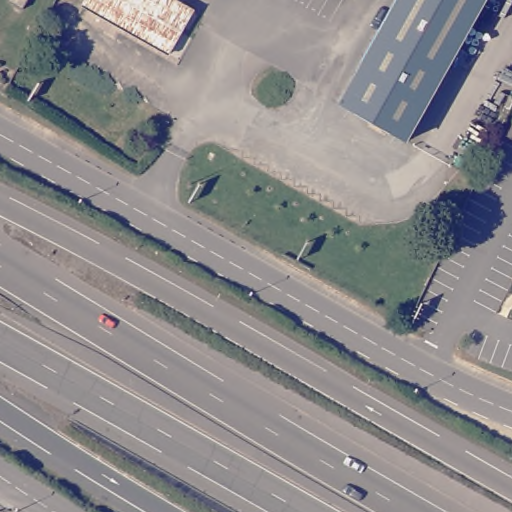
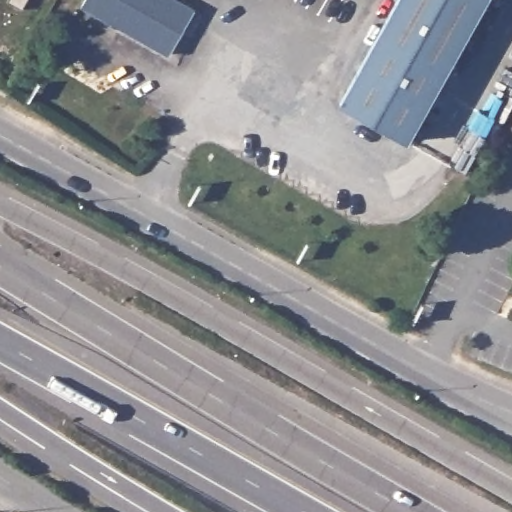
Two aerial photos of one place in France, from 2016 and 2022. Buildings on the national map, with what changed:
unchanged [(9,0),(28,0),(22,12),(8,3),(9,0)]
unchanged [(178,0),(198,11),(175,53),(89,6),(92,0),(178,0)]
unchanged [(399,0),(486,0),(407,143),(341,106),(399,0)]
unchanged [(508,136),(512,127),(512,138),(508,136)]

